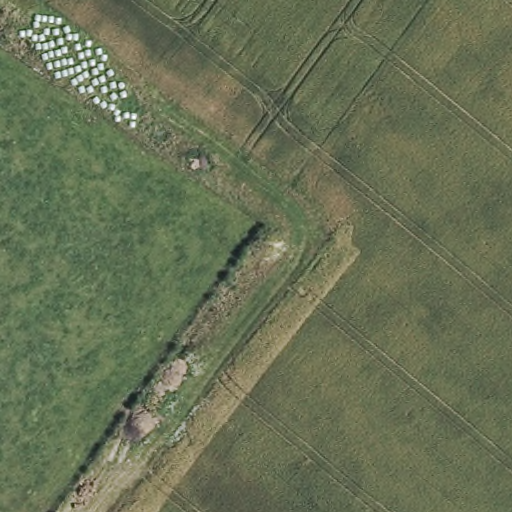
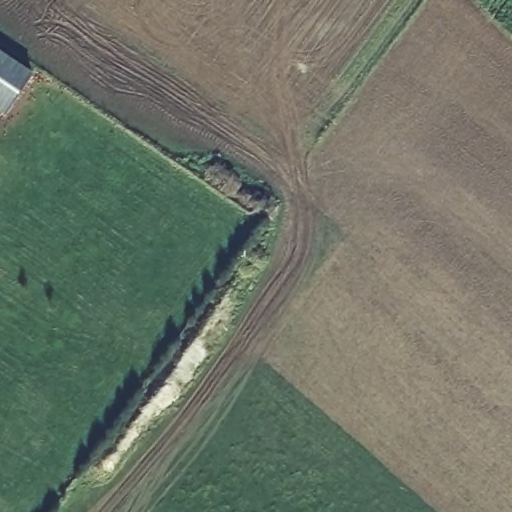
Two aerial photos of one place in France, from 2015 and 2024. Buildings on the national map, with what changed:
new [(0,114),(0,52),(31,73),(2,115),(0,114)]

